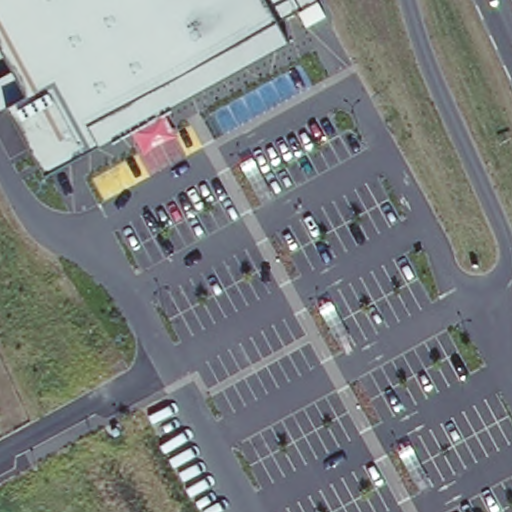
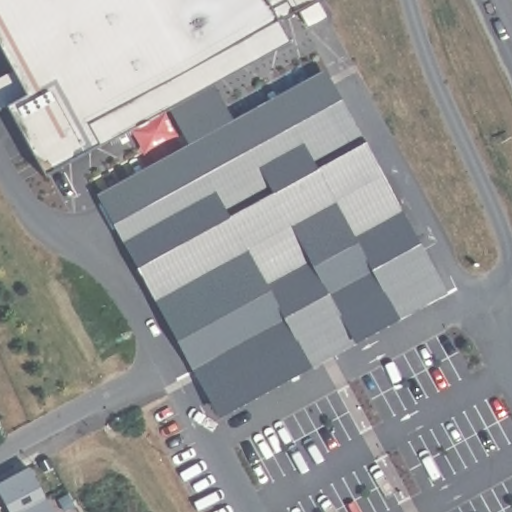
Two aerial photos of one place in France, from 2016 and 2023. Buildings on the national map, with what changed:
unchanged [(275,22),(287,43),(215,83),(165,110),(43,175),(9,107),(0,113),(0,79),(14,71),(0,47),(0,0),(314,0),(275,22)]
new [(101,196),(189,146),(165,110),(215,83),(235,121),(328,70),(453,301),(224,423),(101,196)]
new [(53,512),(12,512),(0,489),(0,486),(31,468),(53,512)]

